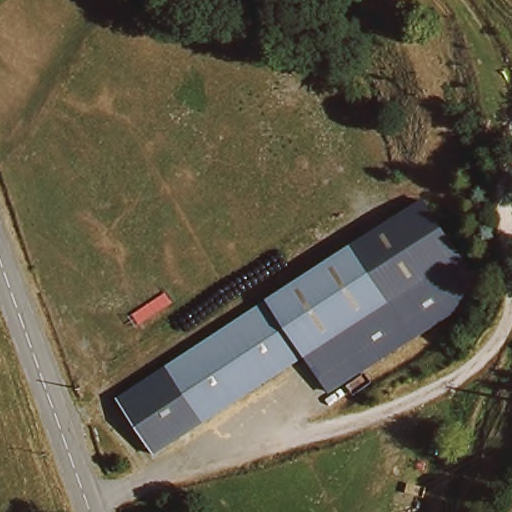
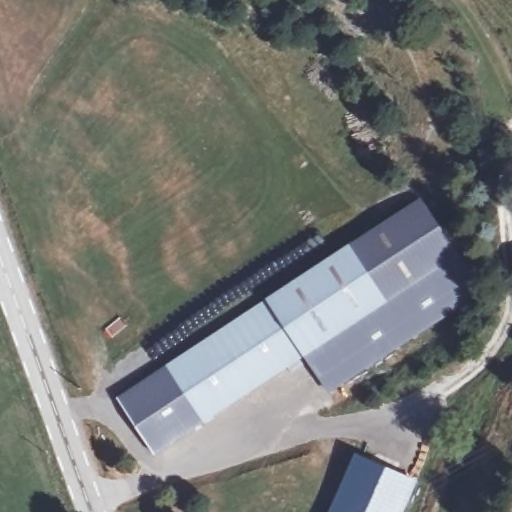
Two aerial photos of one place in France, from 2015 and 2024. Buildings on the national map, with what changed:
unchanged [(420,202),(480,295),(362,371),(337,333),(304,355),(150,455),(116,400),(420,202)]
unchanged [(512,252),(512,260),(509,252),(512,252)]
unchanged [(328,393),(304,355),(337,333),(362,371),(328,393)]
new [(420,479),(405,512),(331,512),(357,455),(420,479)]

